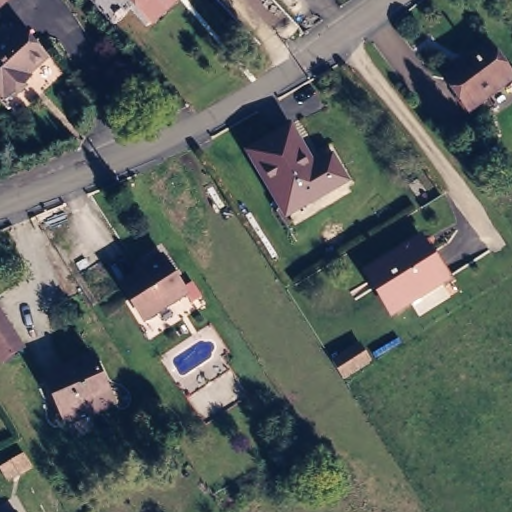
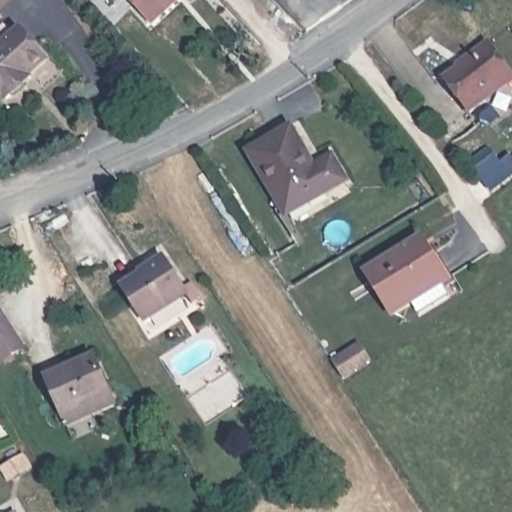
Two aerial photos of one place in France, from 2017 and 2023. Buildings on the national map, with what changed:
unchanged [(152,28),(129,0),(183,0),(152,28)]
unchanged [(12,28),(21,39),(28,33),(54,66),(33,86),(33,93),(13,108),(0,93),(0,39),(12,28)]
unchanged [(466,55),(486,39),(512,70),(512,73),(469,106),(446,76),(468,58),(466,55)]
unchanged [(281,130),(306,166),(321,157),(336,180),(303,202),(297,194),(276,207),(243,151),(281,130)]
unchanged [(413,237),(439,275),(382,309),(356,269),(413,237)]
unchanged [(144,272),(141,266),(167,252),(190,291),(146,319),(124,284),(144,272)]
unchanged [(25,351),(0,366),(0,365),(0,309),(25,351)]
unchanged [(339,355),(366,340),(376,357),(351,373),(339,355)]
unchanged [(65,426),(63,417),(44,377),(94,357),(110,396),(114,404),(65,426)]

